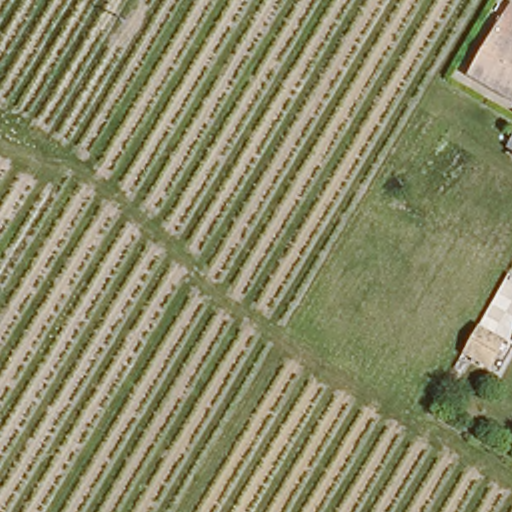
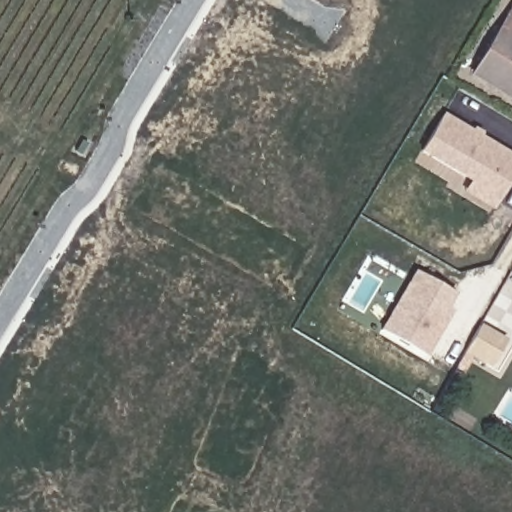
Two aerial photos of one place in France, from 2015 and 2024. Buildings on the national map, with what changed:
unchanged [(511,0),(512,1),(512,90),(509,95),(467,69),(511,0)]
new [(512,175),(491,209),(461,192),(467,182),(417,152),(441,112),(512,155),(512,175)]
new [(455,293),(448,307),(454,310),(428,356),(379,330),(413,271),(455,293)]
unchanged [(506,343),(492,366),(465,350),(479,325),(506,343)]

